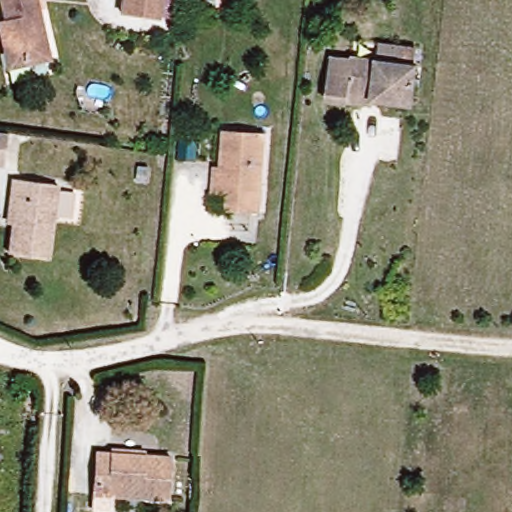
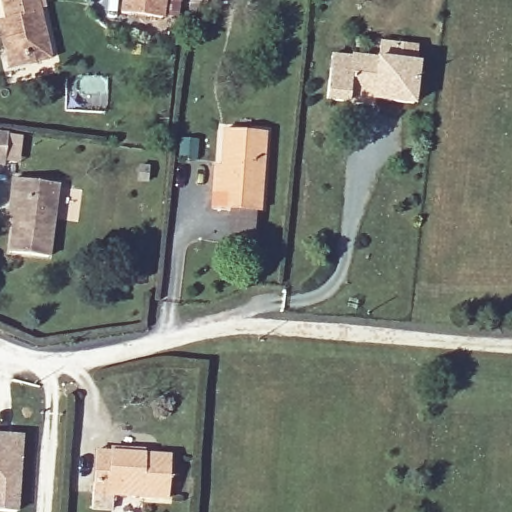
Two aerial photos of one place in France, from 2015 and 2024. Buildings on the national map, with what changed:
unchanged [(0,45),(0,33),(9,31),(2,0),(37,0),(50,58),(20,64),(6,66),(2,55),(0,45)]
unchanged [(161,20),(122,14),(124,0),(164,0),(161,20)]
unchanged [(187,4),(187,0),(217,0),(217,7),(187,4)]
unchanged [(403,51),(420,54),(417,70),(415,70),(409,110),(368,103),(369,99),(345,95),(343,105),(327,103),(334,60),(355,63),(356,60),(401,67),(403,51)]
unchanged [(212,165),(223,166),(227,130),(265,135),(256,212),(226,209),(227,192),(220,192),(209,190),(212,165)]
unchanged [(0,166),(0,134),(7,135),(4,166),(0,166)]
unchanged [(144,154),(134,152),(135,143),(145,144),(144,154)]
unchanged [(46,259),(7,256),(12,200),(6,200),(7,181),(52,186),(46,259)]
new [(20,460),(20,461),(16,512),(0,512),(0,436),(22,437),(20,460)]
unchanged [(95,495),(95,482),(98,451),(114,453),(174,458),(170,502),(95,495)]

